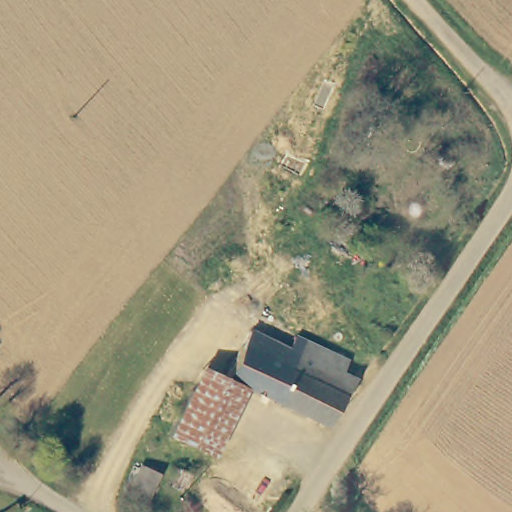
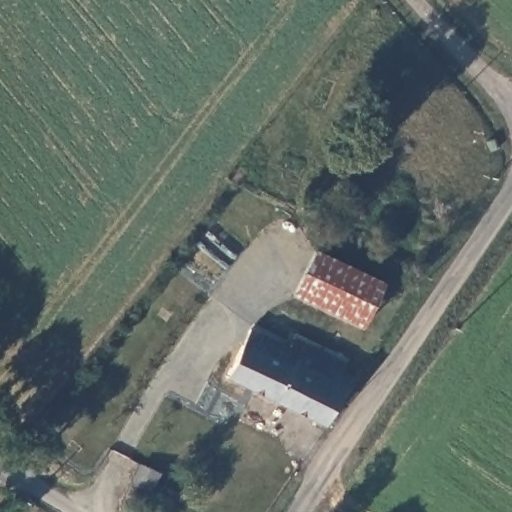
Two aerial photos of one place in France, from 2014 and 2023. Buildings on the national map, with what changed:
new [(364,329),(293,296),(315,250),(386,283),(364,329)]
unchanged [(290,345),(295,333),(349,360),(361,366),(356,375),(325,425),(249,386),(227,375),(252,326),(290,345)]

